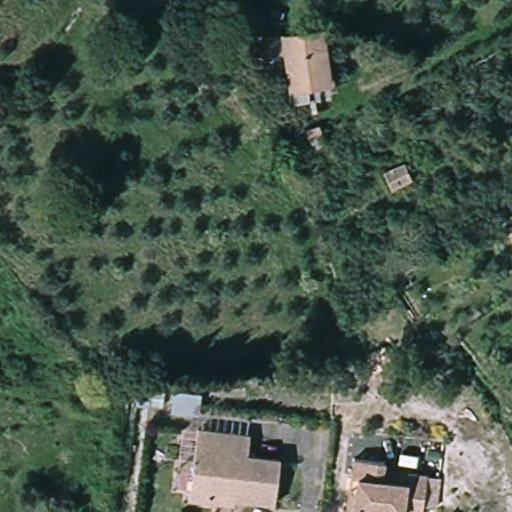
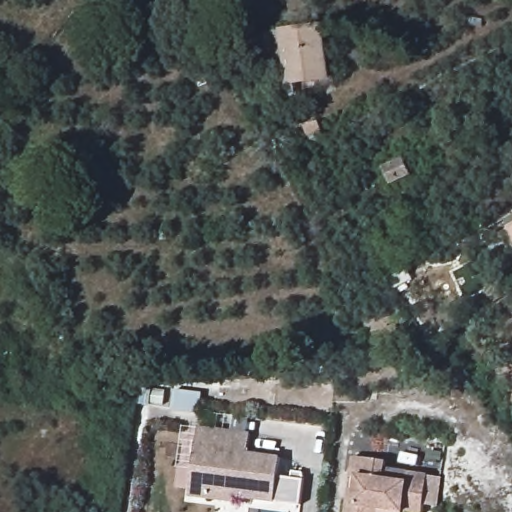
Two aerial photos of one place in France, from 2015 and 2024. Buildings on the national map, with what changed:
unchanged [(296,68),(286,14),(323,9),(331,63),(296,68)]
unchanged [(310,143),(304,131),(319,124),(326,135),(310,143)]
unchanged [(390,185),(383,169),(403,160),(410,175),(390,185)]
unchanged [(510,224),(512,223),(512,228),(510,224)]
unchanged [(371,371),(364,359),(361,353),(379,345),(389,362),(371,371)]
unchanged [(255,453),(285,455),(273,507),(189,500),(200,427),(252,435),(255,453)]
unchanged [(387,467),(430,469),(432,508),(422,509),(421,512),(348,512),(356,455),(388,460),(387,467)]

